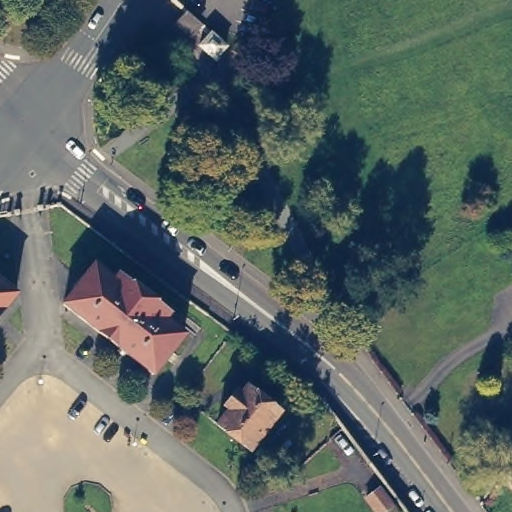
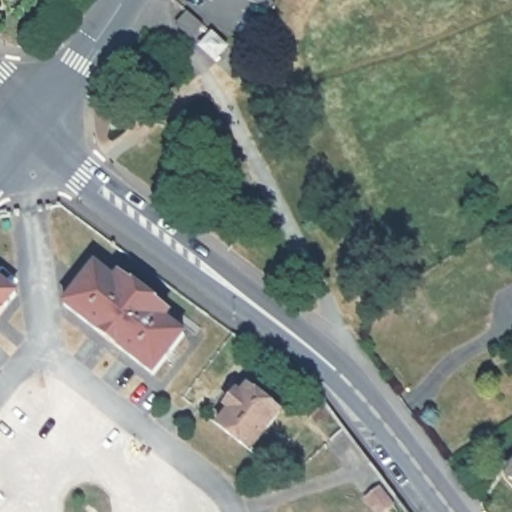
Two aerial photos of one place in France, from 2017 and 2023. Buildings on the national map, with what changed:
unchanged [(201,26),(192,37),(179,25),(188,14),(201,26)]
unchanged [(215,60),(200,47),(211,35),(212,33),(227,47),(215,60)]
unchanged [(161,315),(180,331),(149,370),(59,300),(90,260),(110,276),(115,270),(165,309),(161,315)]
unchanged [(0,310),(0,275),(17,289),(0,310)]
unchanged [(219,426),(230,410),(226,407),(237,393),(241,397),(247,388),(280,413),(250,451),(219,426)]
unchanged [(502,474),(512,462),(512,481),(502,474)]
unchanged [(380,489),(397,512),(376,512),(367,499),(380,489)]

